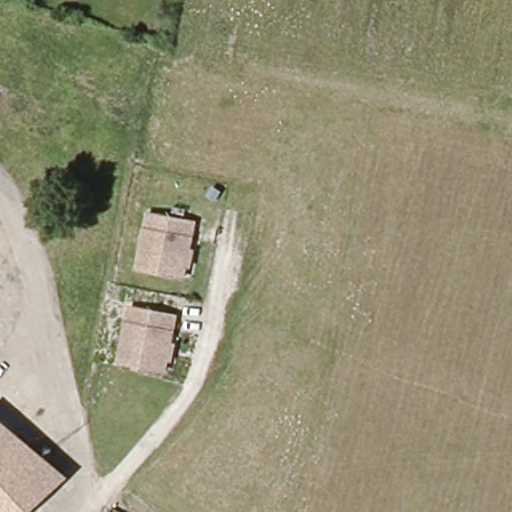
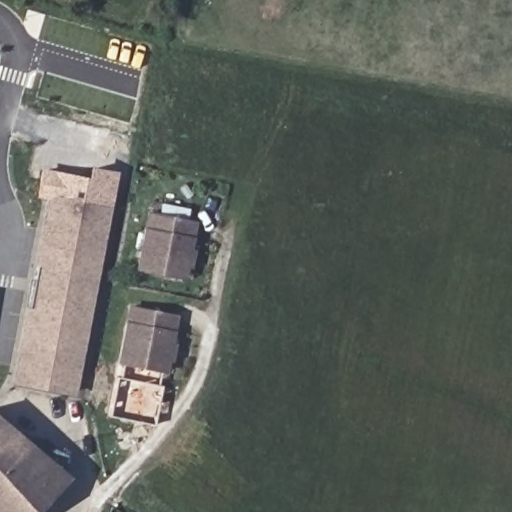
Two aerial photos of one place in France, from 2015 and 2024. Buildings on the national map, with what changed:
new [(9,383),(47,192),(111,204),(75,396),(9,383)]
unchanged [(185,277),(139,268),(146,229),(150,229),(154,214),(193,221),(188,237),(191,238),(185,277)]
unchanged [(170,332),(173,333),(165,371),(120,362),(128,323),(131,324),(134,308),(174,315),(170,332)]
unchanged [(61,483),(32,512),(0,512),(0,430),(61,483)]

